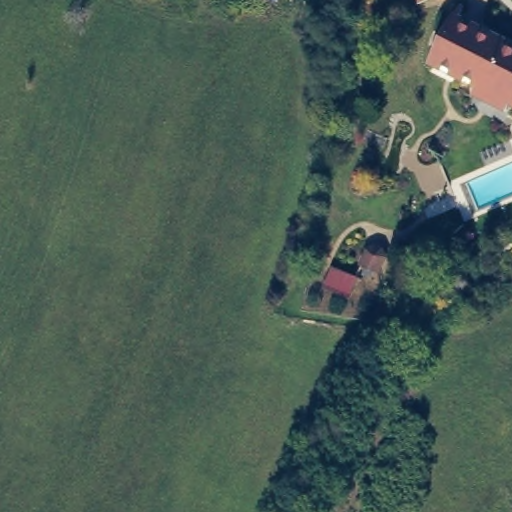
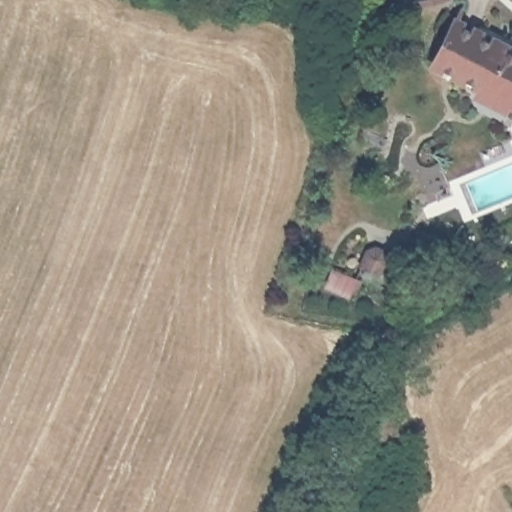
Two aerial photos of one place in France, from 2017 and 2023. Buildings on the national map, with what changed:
unchanged [(412,1),(411,0),(414,0),(412,1)]
unchanged [(455,23),(512,52),(512,104),(430,61),(452,22),(458,5),(460,6),(455,23)]

